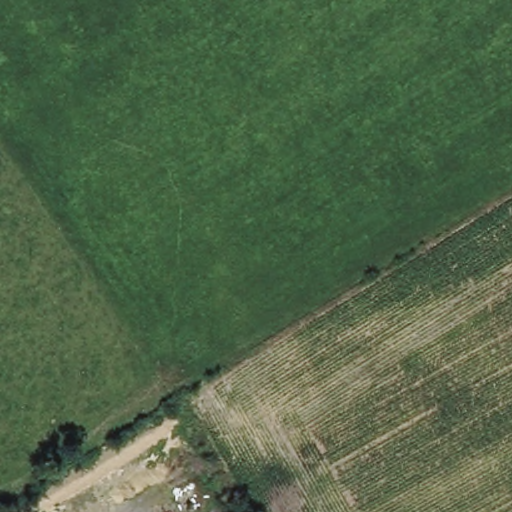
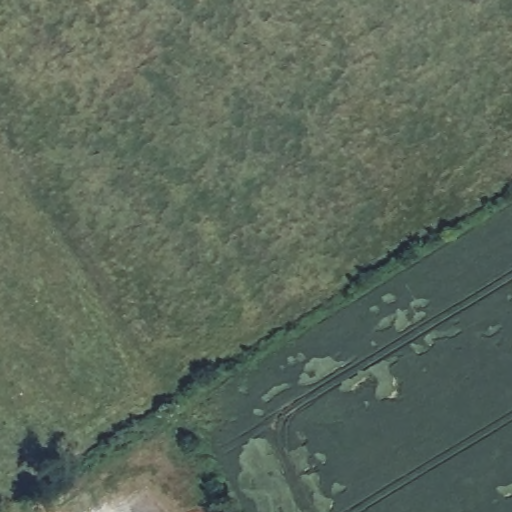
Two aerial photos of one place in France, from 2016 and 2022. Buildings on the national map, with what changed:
[]

